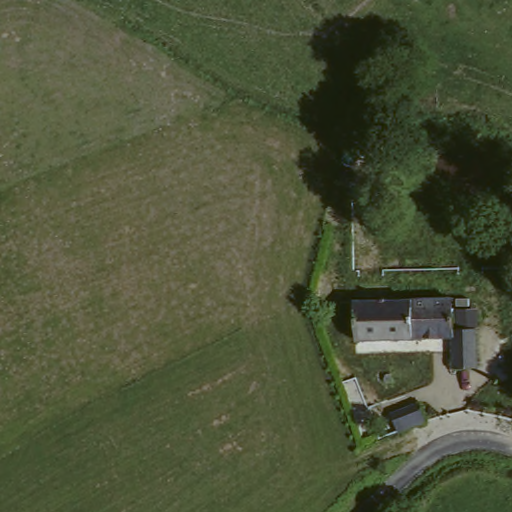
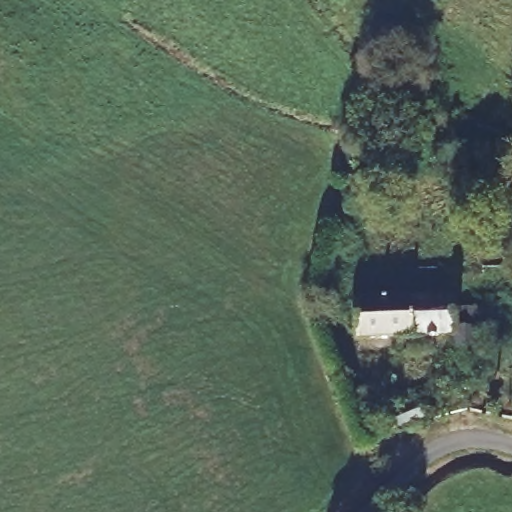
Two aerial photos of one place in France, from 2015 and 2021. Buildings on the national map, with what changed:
unchanged [(455,294),(457,294),(458,326),(480,326),(480,363),(457,363),(457,332),(360,332),(358,296),(455,294)]
unchanged [(428,417),(401,428),(393,409),(422,398),(428,417)]

